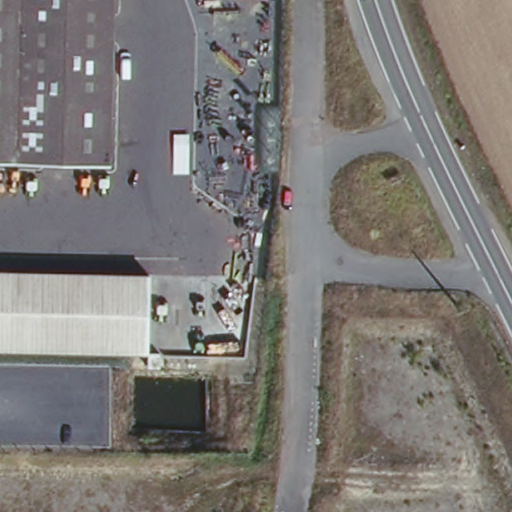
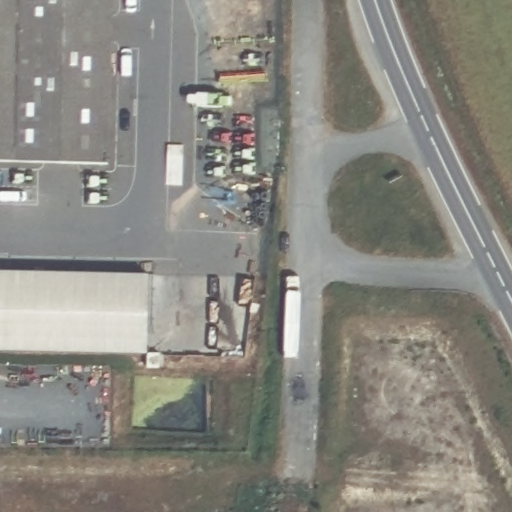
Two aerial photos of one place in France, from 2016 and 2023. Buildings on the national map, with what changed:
unchanged [(0,164),(0,0),(112,0),(112,165),(0,164)]
unchanged [(146,273),(146,354),(0,352),(0,273),(146,273)]

